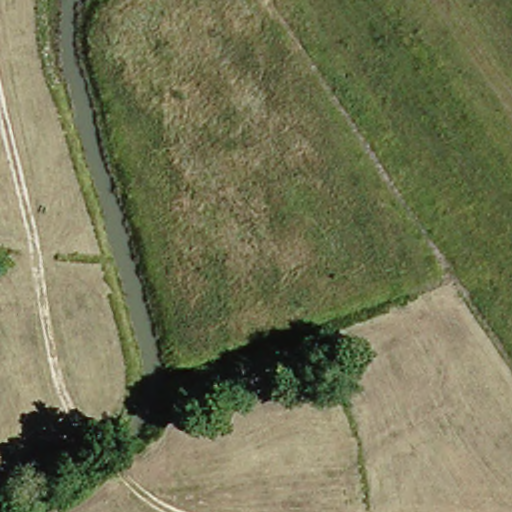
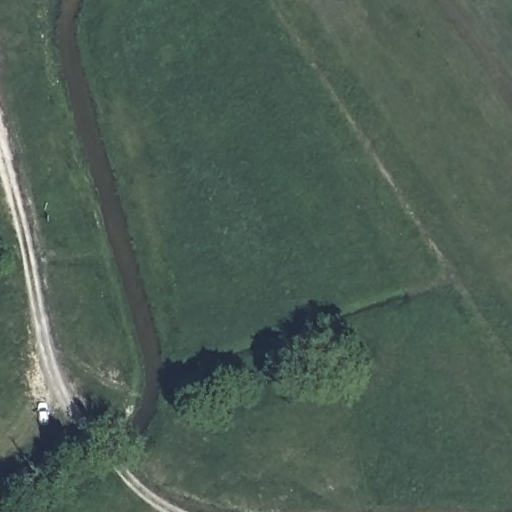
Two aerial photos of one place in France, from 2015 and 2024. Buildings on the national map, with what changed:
[]

